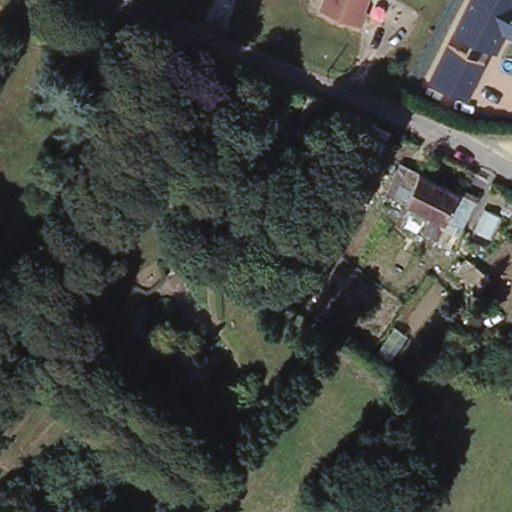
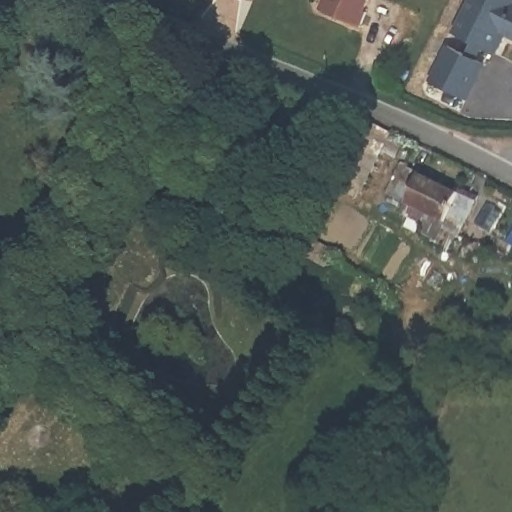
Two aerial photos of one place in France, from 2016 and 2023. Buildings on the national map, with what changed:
unchanged [(320,7),(322,0),(369,0),(361,22),(320,7)]
unchanged [(496,55),(483,48),(477,60),(485,64),(468,100),(428,81),(447,43),(467,54),(472,44),(452,32),(468,0),(512,0),(512,39),(503,35),(496,55)]
unchanged [(195,97),(202,79),(213,83),(217,77),(230,82),(227,89),(231,91),(224,107),(195,97)]
unchanged [(278,125),(297,87),(322,98),(303,133),(302,135),(278,125)]
unchanged [(406,208),(422,177),(459,197),(445,227),(406,208)]

